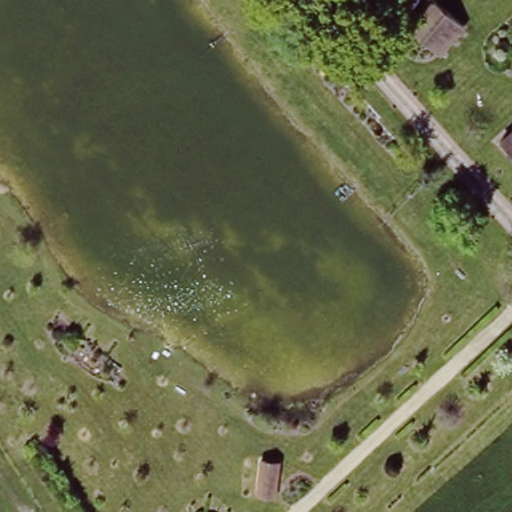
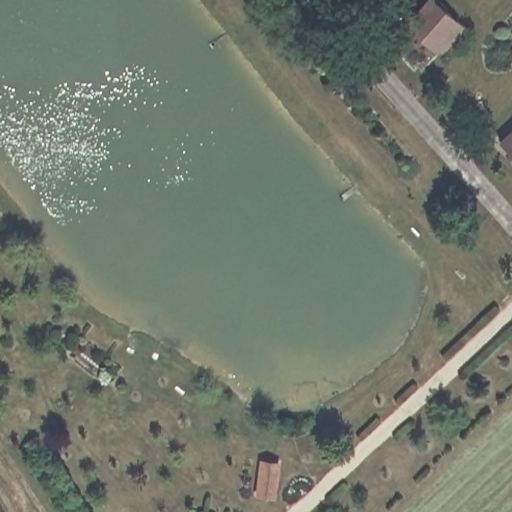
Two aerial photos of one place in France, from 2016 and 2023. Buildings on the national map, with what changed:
unchanged [(433,4),(458,26),(431,53),(407,31),(433,4)]
unchanged [(512,136),(512,138),(511,137),(512,136)]

